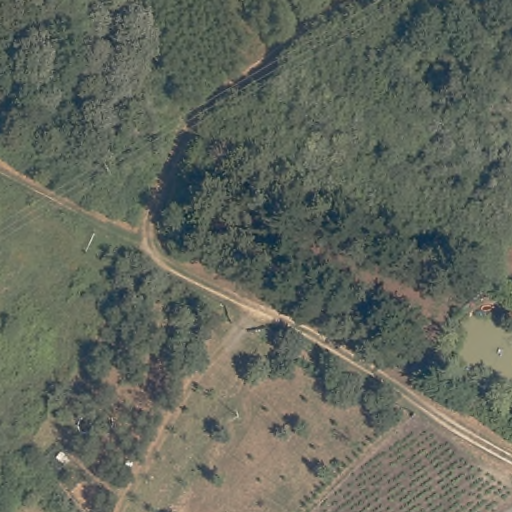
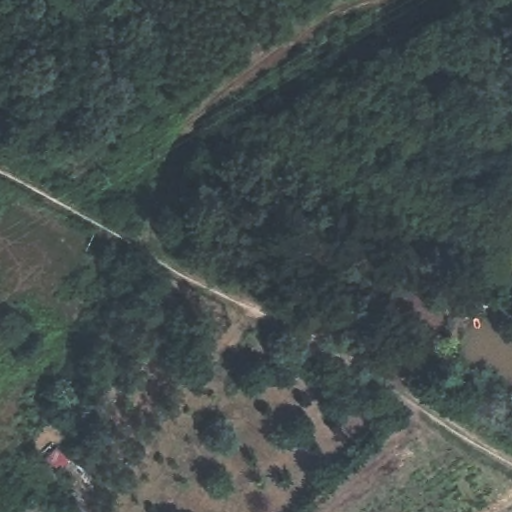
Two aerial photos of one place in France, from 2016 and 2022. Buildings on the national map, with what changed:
[]

